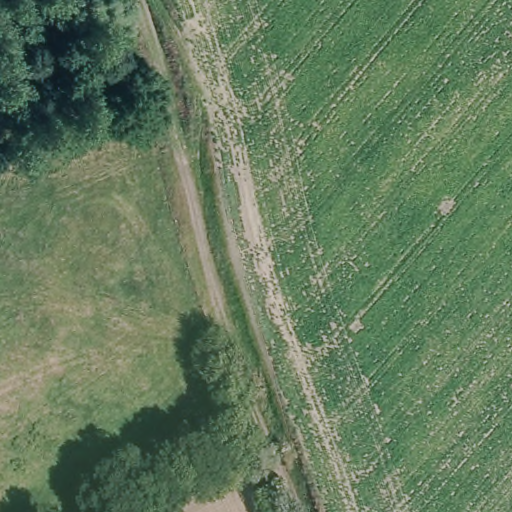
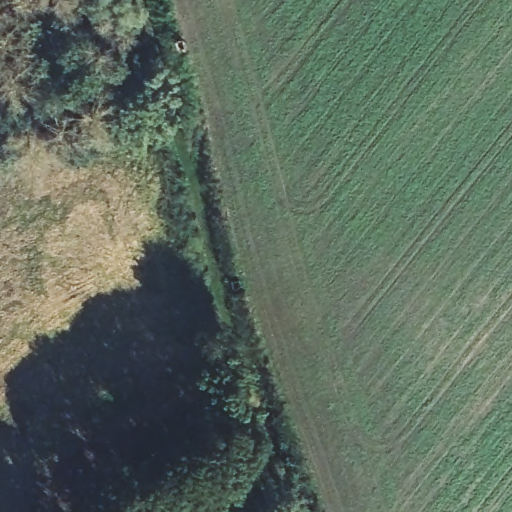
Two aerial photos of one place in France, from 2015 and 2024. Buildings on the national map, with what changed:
unchanged [(173,490),(138,512),(110,512),(107,507),(163,475),(173,490)]

